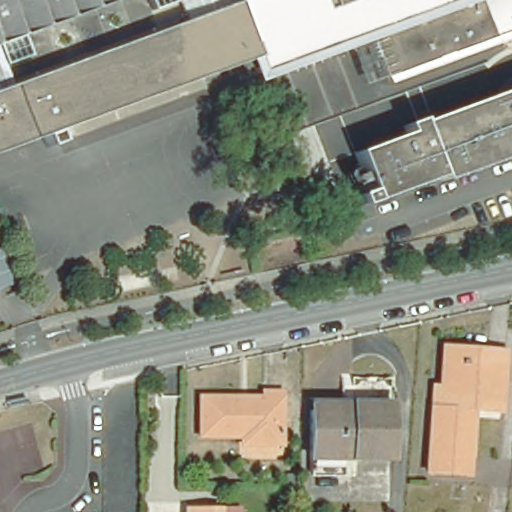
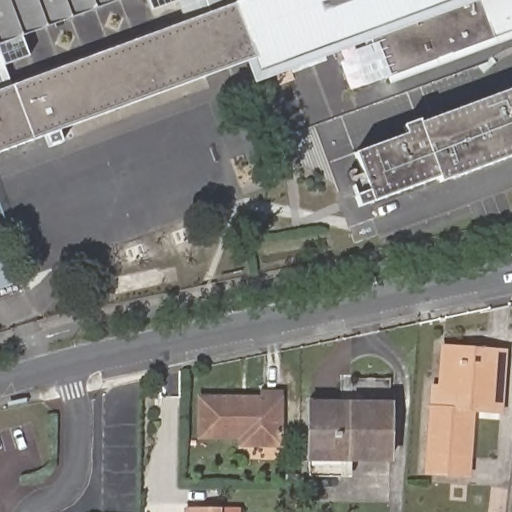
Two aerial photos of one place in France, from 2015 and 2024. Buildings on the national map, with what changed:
unchanged [(16,36),(22,55),(0,63),(0,0),(114,0),(16,36)]
unchanged [(382,79),(363,33),(262,71),(256,58),(0,151),(0,73),(6,88),(187,21),(180,2),(153,11),(149,0),(512,0),(512,32),(382,79)]
unchanged [(373,199),(360,204),(356,192),(369,187),(356,152),(407,133),(404,125),(419,119),(421,124),(512,89),(512,155),(442,181),(440,176),(373,199)]
unchanged [(0,288),(0,229),(19,281),(0,288)]
unchanged [(512,407),(482,404),(477,469),(438,466),(442,401),(442,380),(450,380),(452,341),(477,343),(501,345),(512,346),(512,401),(512,407)]
unchanged [(275,389),(275,383),(292,383),(292,436),(256,436),(256,427),(215,428),(214,390),(275,389)]
unchanged [(308,473),(309,457),(310,411),(311,401),(350,402),(390,403),(388,459),(348,458),(347,475),(308,473)]
unchanged [(200,501),(200,512),(187,512),(187,501),(200,501)]
unchanged [(219,501),(219,512),(200,512),(200,501),(219,501)]

